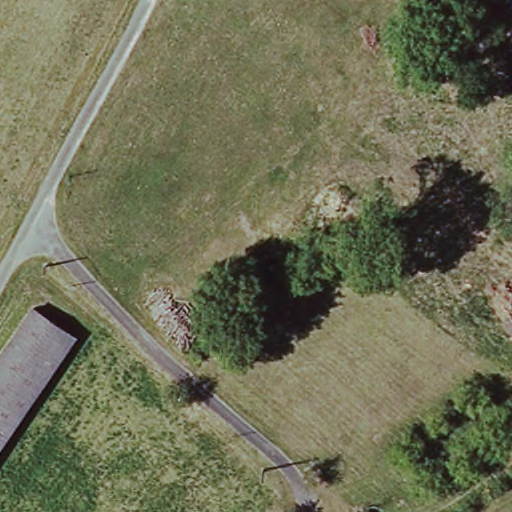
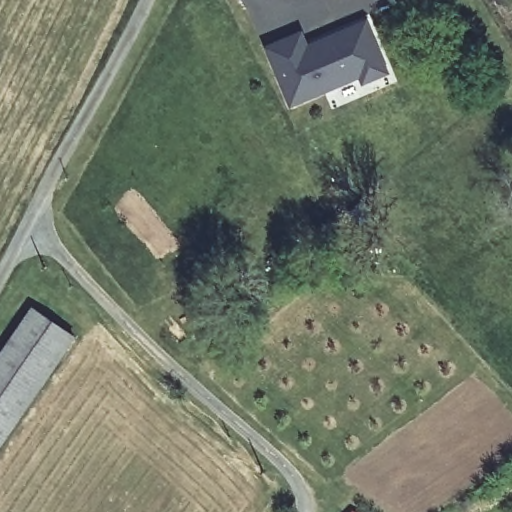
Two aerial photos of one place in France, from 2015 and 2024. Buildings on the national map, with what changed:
new [(304,33),(312,50),(319,48),(317,44),(369,21),(390,71),(367,81),(364,74),(294,103),(270,46),(304,33)]
unchanged [(77,342),(0,446),(0,368),(40,313),(77,342)]

